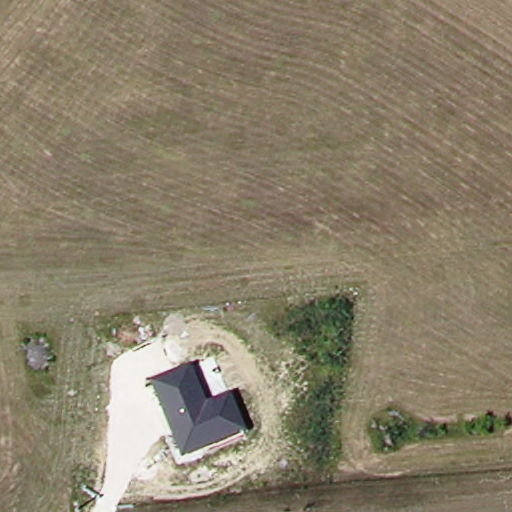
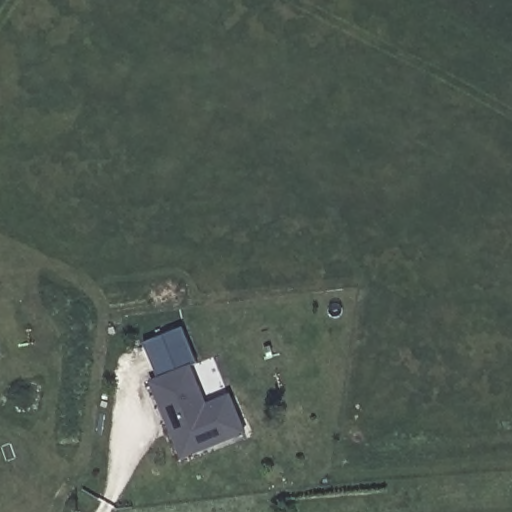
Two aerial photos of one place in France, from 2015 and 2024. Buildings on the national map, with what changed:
new [(198,360),(190,364),(191,367),(161,381),(144,342),(183,326),(198,360)]
unchanged [(181,462),(151,385),(191,367),(206,406),(233,395),(247,433),(181,462)]

